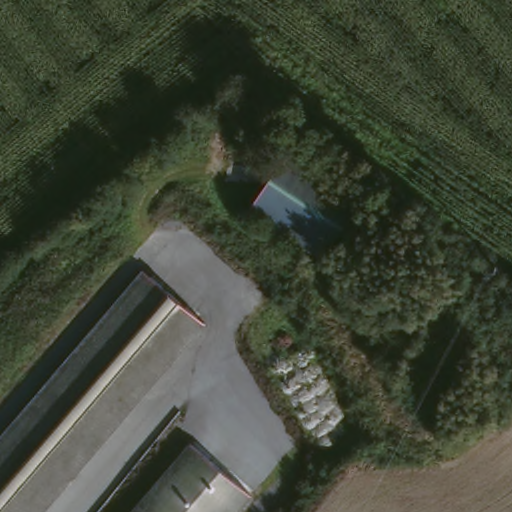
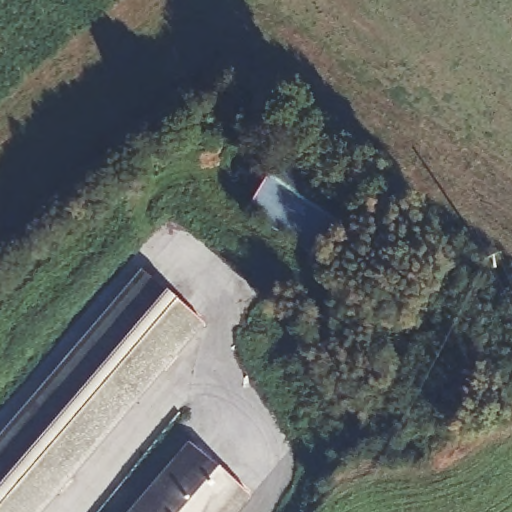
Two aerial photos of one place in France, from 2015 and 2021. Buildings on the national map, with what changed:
unchanged [(256,211),(294,150),(367,196),(327,258),(256,211)]
unchanged [(202,325),(42,512),(0,512),(0,438),(141,272),(202,325)]
unchanged [(252,500),(242,512),(144,512),(196,452),(252,500)]

